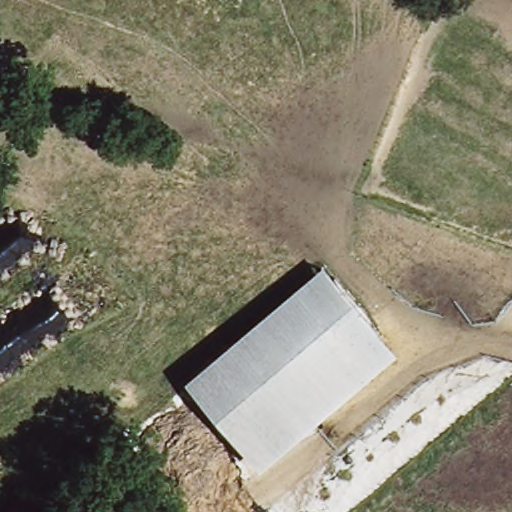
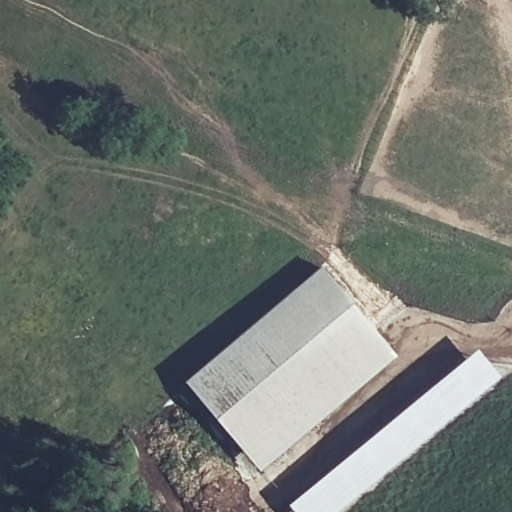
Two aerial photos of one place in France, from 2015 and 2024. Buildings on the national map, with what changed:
unchanged [(325,267),(398,354),(264,469),(187,379),(325,267)]
new [(288,504),(477,348),(499,376),(333,512),(294,512),(288,504)]

